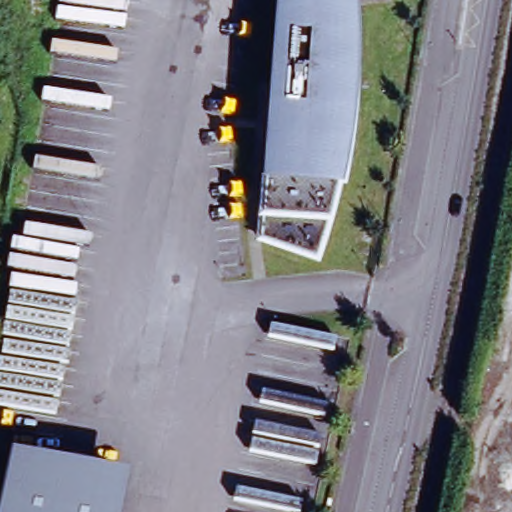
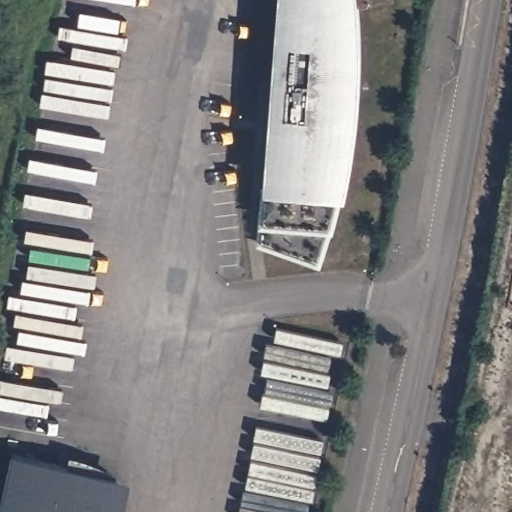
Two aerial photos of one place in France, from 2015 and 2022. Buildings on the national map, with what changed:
unchanged [(359,86),(342,195),(335,227),(322,264),(258,242),(262,222),(263,187),(272,29),(272,0),(357,0),(362,49),(359,86)]
unchanged [(120,512),(0,512),(0,503),(10,451),(127,477),(120,512)]

